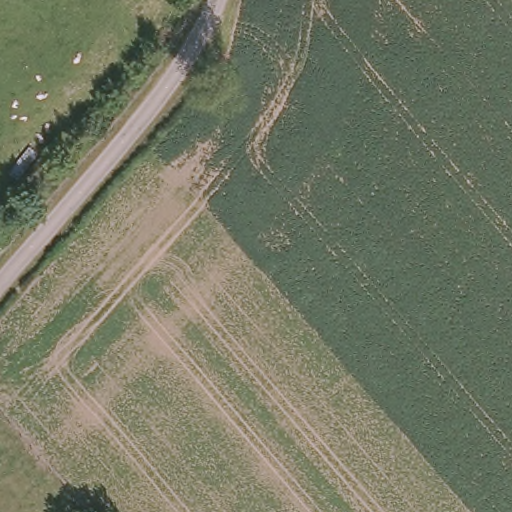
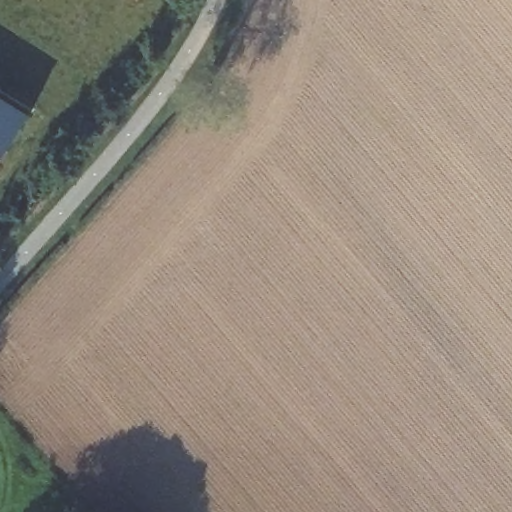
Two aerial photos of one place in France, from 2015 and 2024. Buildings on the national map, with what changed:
new [(0,171),(0,85),(39,110),(0,171)]
demolished [(0,228),(0,220),(4,223),(0,228)]

